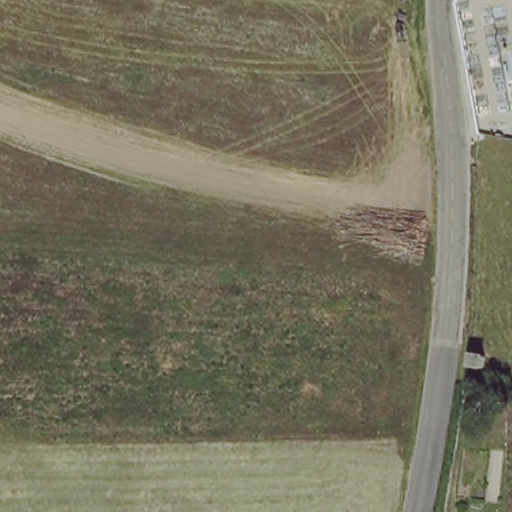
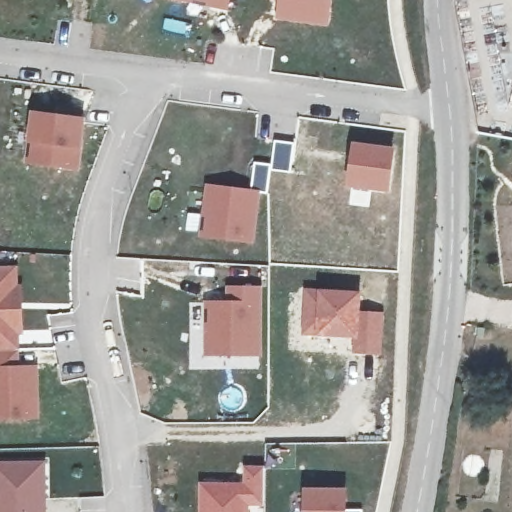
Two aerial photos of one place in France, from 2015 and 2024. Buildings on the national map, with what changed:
new [(196,0),(229,0),(227,6),(196,0)]
new [(278,16),(281,0),(330,0),(328,22),(278,16)]
new [(82,118),(77,166),(27,161),(33,112),(82,118)]
new [(273,139),(293,141),(290,171),(270,169),(273,139)]
new [(355,143),(394,147),(389,186),(351,182),(355,143)]
new [(270,163),(267,192),(257,191),(252,240),(203,235),(208,187),(250,191),(254,161),(270,163)]
new [(16,269),(15,289),(12,289),(12,332),(15,332),(15,351),(0,351),(0,269),(16,269)]
new [(301,287),(361,290),(360,310),(358,339),(350,339),(300,336),(301,287)]
new [(15,289),(15,288),(21,288),(22,333),(16,333),(15,332),(12,332),(12,289),(15,289)]
new [(229,303),(229,288),(259,288),(259,355),(208,355),(207,303),(229,303)]
new [(350,339),(358,339),(360,310),(384,311),(382,355),(350,355),(350,339)]
new [(16,353),(16,368),(0,368),(0,353),(16,353)]
new [(35,417),(0,418),(0,368),(34,368),(35,417)]
new [(43,464),(44,512),(0,512),(0,465),(43,464)]
new [(201,486),(246,486),(246,469),(263,470),(264,504),(246,504),(246,512),(201,512),(201,486)]
new [(345,491),(346,509),(362,509),(363,512),(306,512),(306,491),(345,491)]

